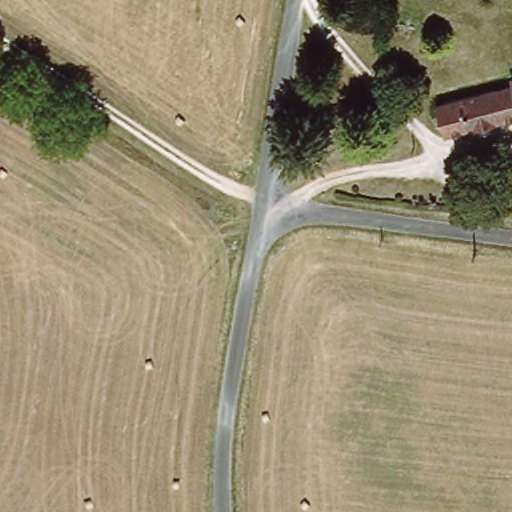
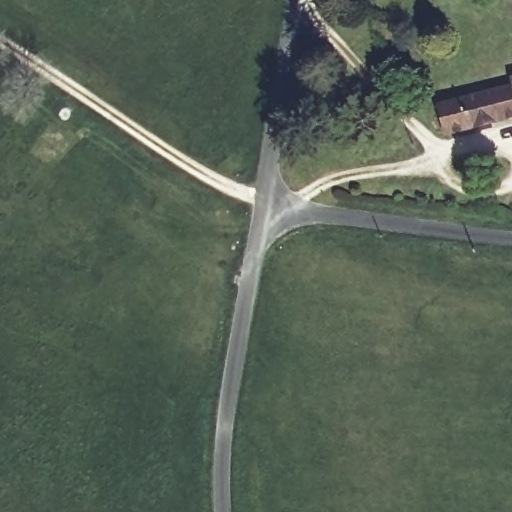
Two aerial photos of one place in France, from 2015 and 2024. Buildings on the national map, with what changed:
unchanged [(512,112),(442,126),(436,99),(441,97),(437,82),(457,77),(461,93),(512,82),(512,112)]

